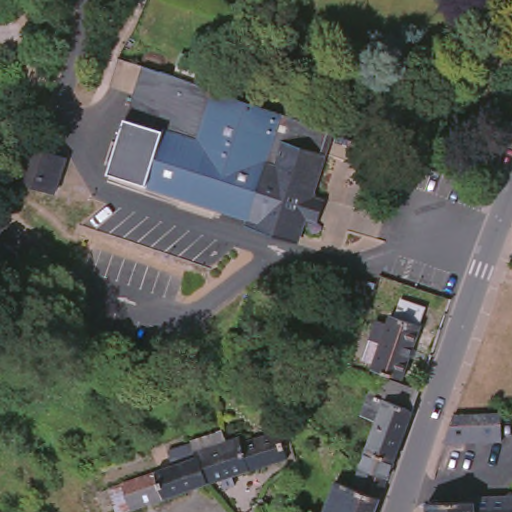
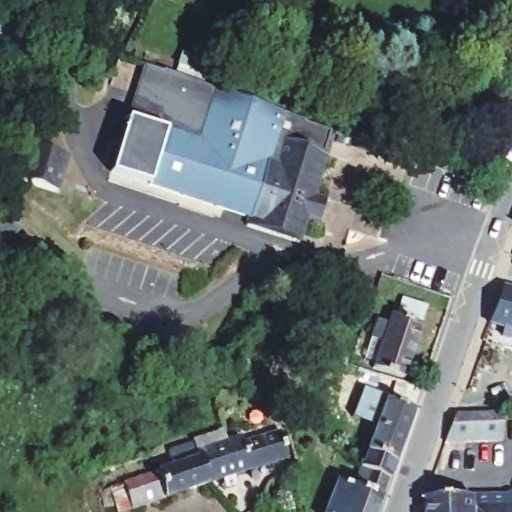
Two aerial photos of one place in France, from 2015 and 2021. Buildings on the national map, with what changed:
unchanged [(187,90),(204,96),(211,99),(218,101),(280,123),(295,129),(323,138),(316,160),(319,160),(305,204),(317,207),(309,230),(299,226),(291,250),(240,234),(243,225),(212,215),(106,181),(141,74),(187,90)]
unchanged [(38,156),(68,166),(56,202),(15,190),(27,153),(38,156)]
new [(512,288),(512,341),(500,336),(503,327),(490,322),(503,285),(512,288)]
unchanged [(377,295),(374,301),(362,297),(365,291),(377,295)]
unchanged [(368,377),(377,351),(365,347),(371,327),(383,331),(386,323),(391,325),(397,305),(421,313),(414,332),(417,333),(399,387),(368,377)]
unchanged [(354,362),(363,365),(359,376),(350,373),(354,362)]
unchanged [(359,423),(373,383),(416,397),(384,486),(365,478),(356,475),(372,429),(359,423)]
unchanged [(465,420),(497,419),(498,419),(499,446),(441,449),(451,421),(465,420)]
unchanged [(236,448),(274,435),(283,462),(203,491),(193,464),(191,465),(189,459),(191,458),(234,443),(236,448)]
unchanged [(148,480),(191,465),(193,464),(203,491),(145,512),(112,512),(107,498),(119,490),(148,480)]
unchanged [(333,490),(358,500),(365,478),(384,486),(375,512),(326,512),(333,490)]
unchanged [(257,495),(270,487),(275,499),(263,507),(262,508),(262,507),(257,495)]
unchanged [(472,503),(505,503),(510,498),(512,499),(512,512),(425,512),(425,509),(472,508),(472,503)]

